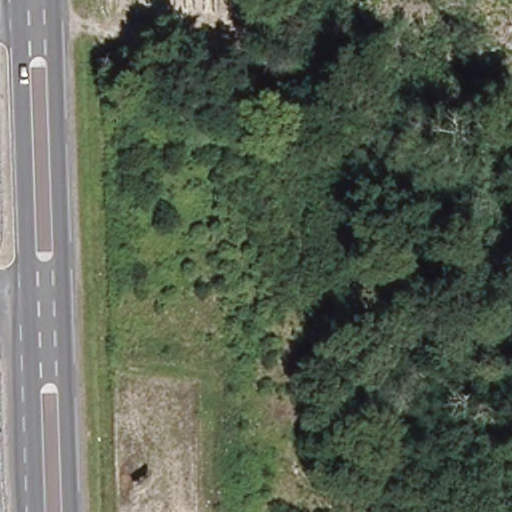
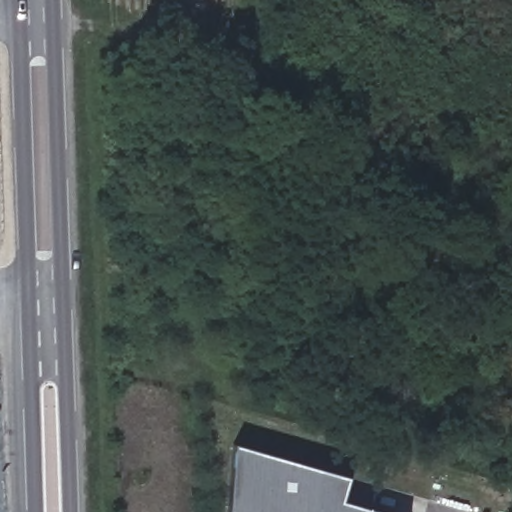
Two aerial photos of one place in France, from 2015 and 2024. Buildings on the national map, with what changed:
unchanged [(337,109),(342,100),(352,102),(351,107),(345,115),(337,109)]
new [(228,512),(234,445),(347,477),(340,500),(378,512),(228,512)]

